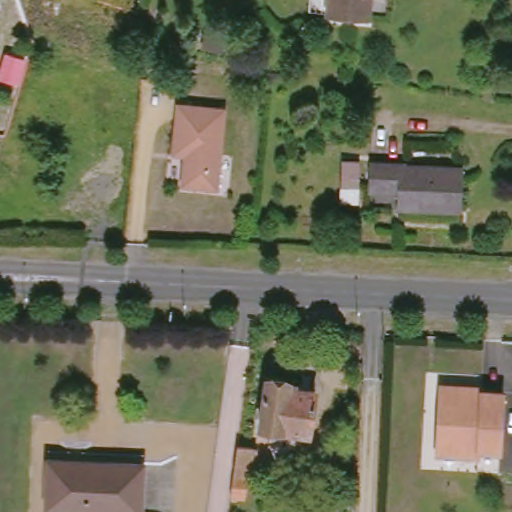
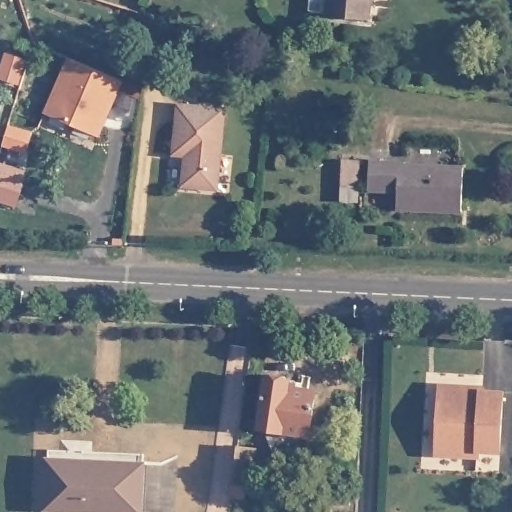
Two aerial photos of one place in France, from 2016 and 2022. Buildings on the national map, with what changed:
unchanged [(372,22),(331,18),(333,0),(375,0),(372,22)]
new [(12,49),(32,55),(24,80),(5,73),(12,49)]
new [(75,52),(127,75),(122,87),(101,133),(49,111),(70,64),(75,52)]
unchanged [(233,112),(222,192),(187,186),(190,163),(193,156),(180,155),(186,105),(233,112)]
unchanged [(374,193),(345,189),(346,162),(363,159),(363,183),(377,185),(375,160),(470,164),(466,215),(399,213),(396,192),(374,193)]
new [(26,172),(16,207),(0,203),(0,163),(26,172)]
unchanged [(312,433),(262,426),(270,375),(291,378),(290,384),(319,388),(312,433)]
unchanged [(501,453),(481,451),(480,458),(438,453),(443,393),(485,398),(485,401),(506,403),(501,453)]
unchanged [(239,444),(251,445),(245,494),(232,493),(239,444)]
unchanged [(144,512),(48,512),(53,447),(147,453),(144,512)]

